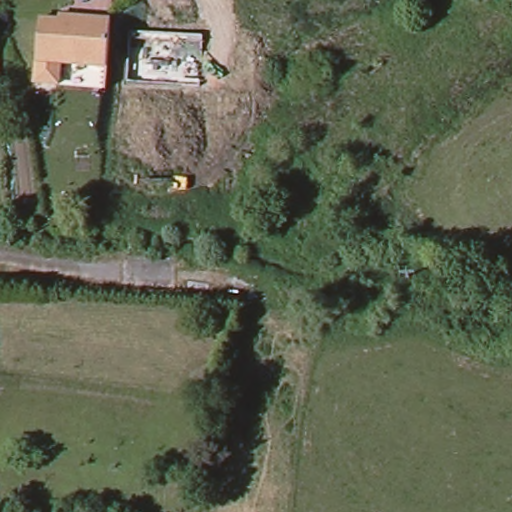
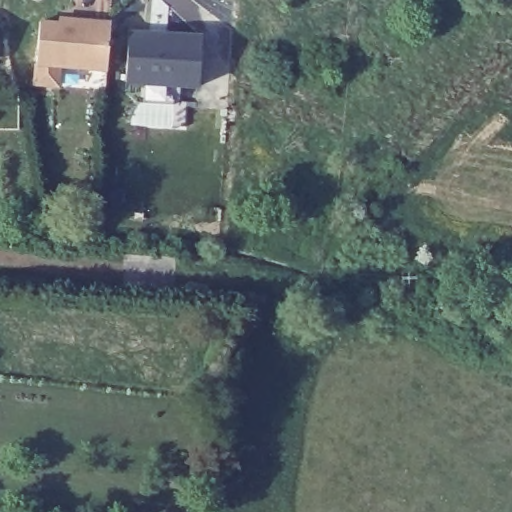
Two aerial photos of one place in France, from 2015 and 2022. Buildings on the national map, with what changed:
unchanged [(35,83),(37,63),(40,21),(59,22),(59,18),(60,17),(65,18),(75,18),(111,21),(110,42),(110,44),(107,68),(61,64),(60,84),(35,83)]
new [(129,32),(202,36),(200,88),(126,84),(129,32)]

